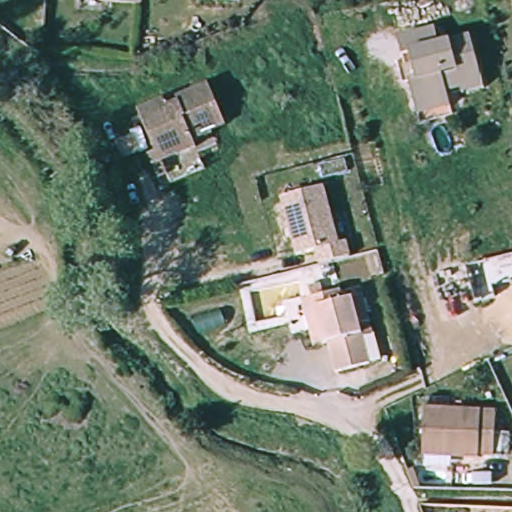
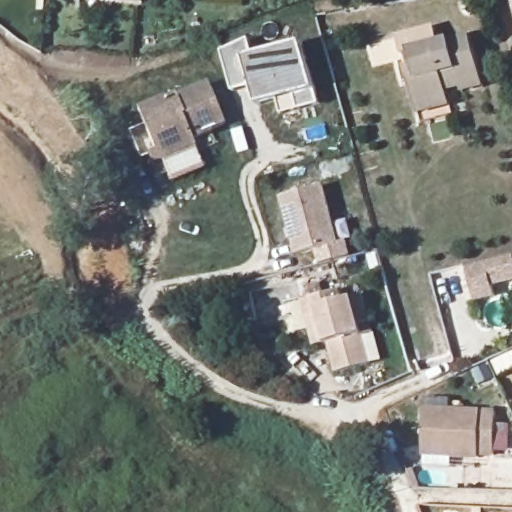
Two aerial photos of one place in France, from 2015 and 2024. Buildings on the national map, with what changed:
unchanged [(507,0),(512,0),(512,22),(507,0)]
unchanged [(444,56),(473,47),(482,82),(445,91),(448,101),(417,110),(402,50),(439,40),(444,56)]
new [(279,104),(259,110),(253,90),(235,96),(232,86),(223,56),(250,44),(255,59),(303,45),(321,106),(301,112),(283,118),(279,104)]
unchanged [(164,96),(166,102),(179,97),(178,93),(181,91),(208,80),(210,84),(226,120),(193,136),(196,144),(193,145),(196,154),(159,172),(150,154),(156,150),(138,107),(164,96)]
unchanged [(323,185),(339,241),(348,240),(351,255),(318,262),(314,249),(295,255),(281,196),(323,185)]
unchanged [(512,253),(512,282),(493,285),(496,296),(475,301),(465,265),(512,253)]
unchanged [(346,302),(366,296),(373,318),(359,323),(371,361),(336,371),(324,342),(314,346),(303,299),(342,287),(346,302)]
unchanged [(495,414),(492,450),(481,450),(479,461),(424,455),(427,408),(495,414)]

